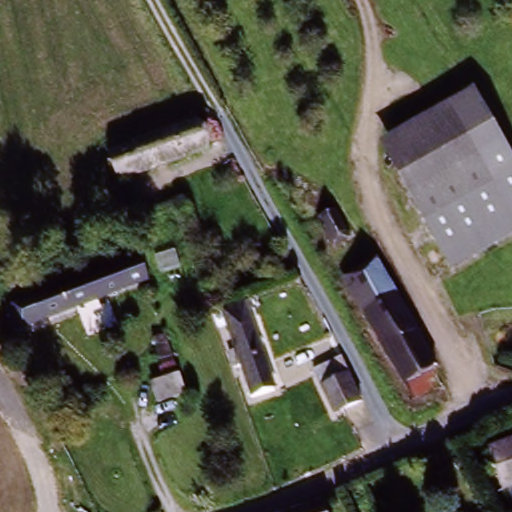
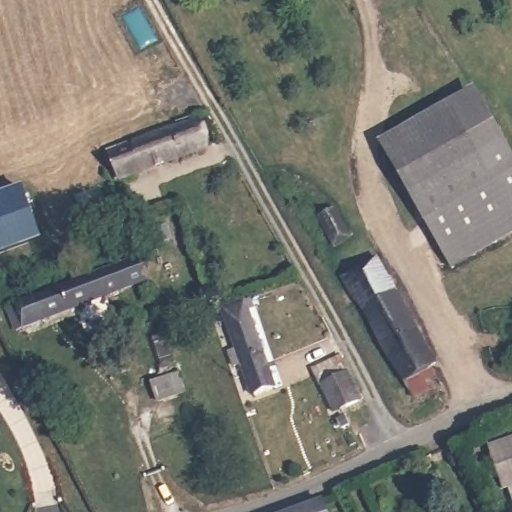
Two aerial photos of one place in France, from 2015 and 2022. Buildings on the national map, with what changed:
unchanged [(512,152),(512,230),(452,264),(382,138),(475,84),(512,152)]
unchanged [(210,140),(130,178),(120,156),(200,117),(210,140)]
new [(43,243),(0,258),(0,195),(22,188),(43,243)]
unchanged [(341,247),(328,254),(311,223),(322,215),(341,247)]
unchanged [(2,304),(140,252),(150,278),(24,327),(20,318),(8,321),(2,304)]
unchanged [(437,365),(407,385),(349,283),(382,265),(437,365)]
unchanged [(221,328),(247,311),(285,384),(258,399),(221,328)]
unchanged [(359,399),(332,412),(307,367),(335,352),(359,399)]
unchanged [(199,396),(172,407),(164,387),(174,383),(169,369),(186,363),(199,396)]
unchanged [(492,446),(512,437),(512,497),(492,446)]
unchanged [(325,497),(333,512),(286,512),(325,497)]

